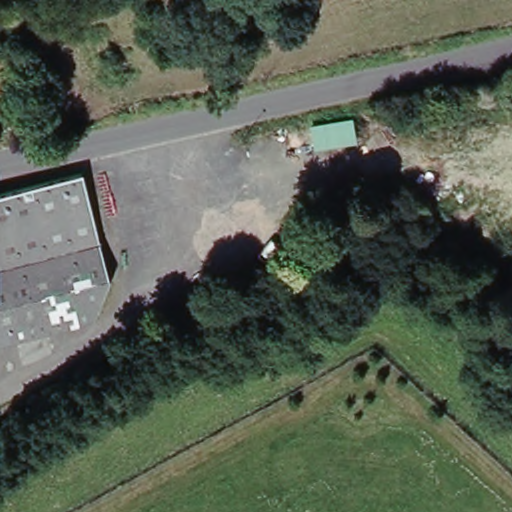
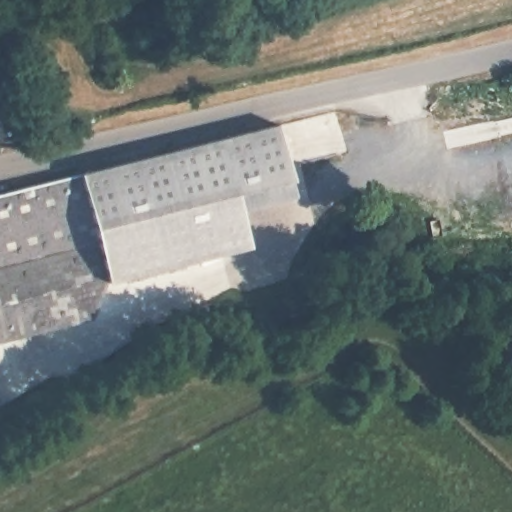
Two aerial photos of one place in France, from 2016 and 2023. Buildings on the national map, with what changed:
new [(294,178),(240,192),(251,248),(122,281),(91,172),(280,122),(294,178)]
unchanged [(0,156),(0,149),(1,155),(0,156)]
unchanged [(122,281),(102,328),(0,348),(0,190),(91,172),(122,281)]

